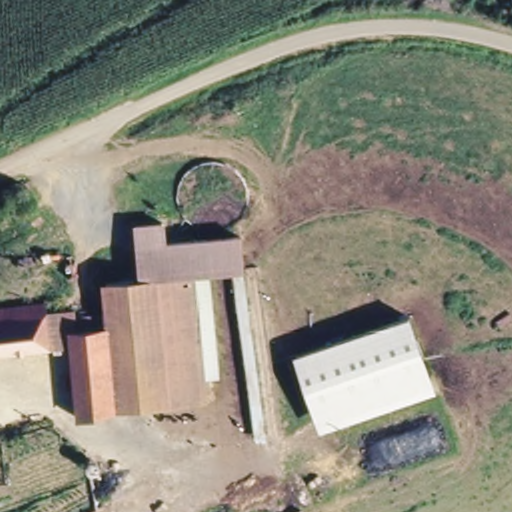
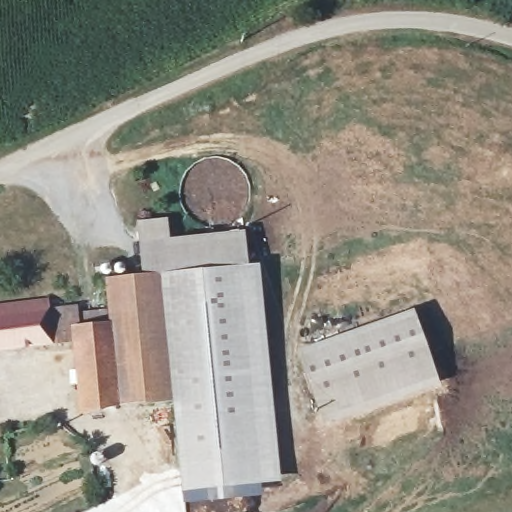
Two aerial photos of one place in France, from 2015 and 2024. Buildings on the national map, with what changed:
unchanged [(135,222),(166,218),(169,239),(243,230),(271,433),(258,435),(235,267),(215,268),(224,373),(210,374),(212,399),(205,399),(192,270),(141,275),(135,222)]
new [(171,402),(205,399),(212,399),(210,374),(224,373),(215,268),(235,267),(258,435),(271,433),(248,266),(258,266),(280,482),(259,485),(259,496),(181,504),(180,493),(171,402)]
unchanged [(102,310),(98,279),(141,275),(192,270),(205,399),(112,408),(102,310)]
unchanged [(110,413),(76,417),(66,347),(0,355),(0,303),(45,297),(45,308),(70,304),(71,313),(102,310),(112,408),(110,413)]
unchanged [(437,381),(321,422),(295,348),(411,310),(437,381)]

